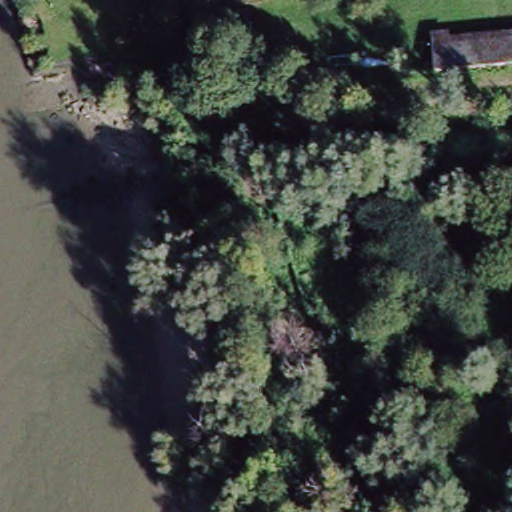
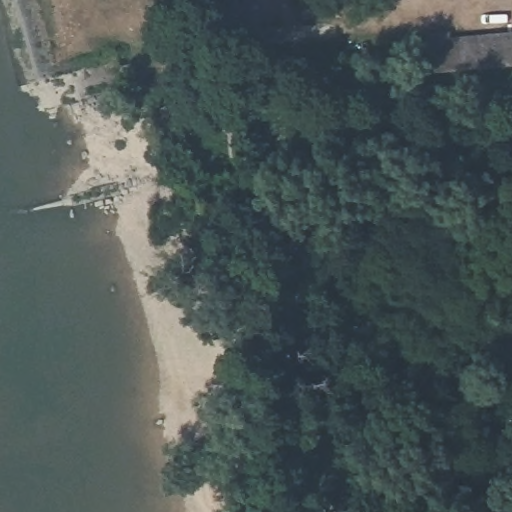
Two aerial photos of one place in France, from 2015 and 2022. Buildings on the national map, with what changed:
unchanged [(512,30),(512,73),(427,79),(427,33),(512,30)]

